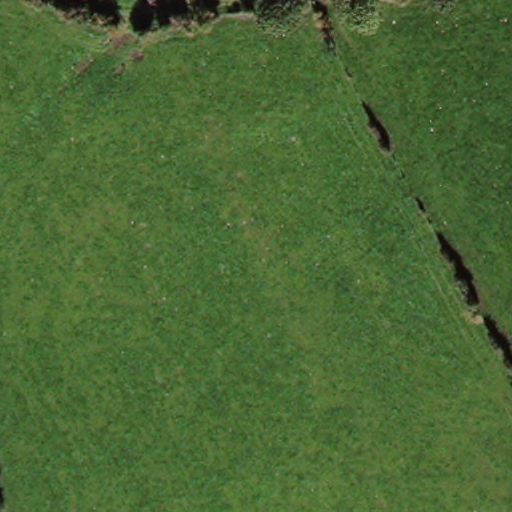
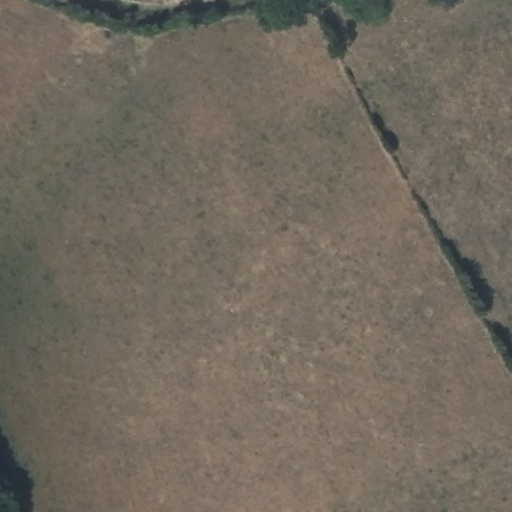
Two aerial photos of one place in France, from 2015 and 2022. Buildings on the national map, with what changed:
[]

